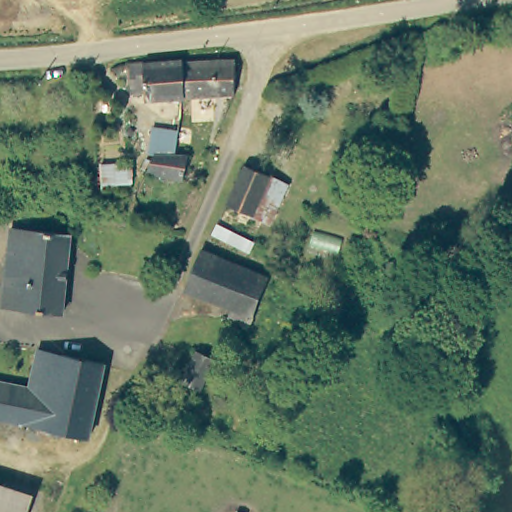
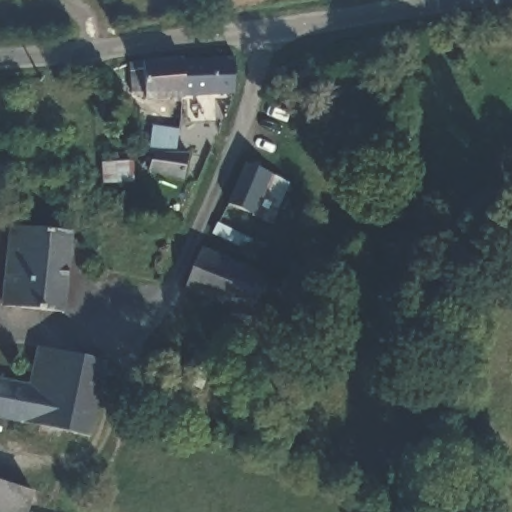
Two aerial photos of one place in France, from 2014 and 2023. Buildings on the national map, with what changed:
unchanged [(185,62),(238,61),(238,65),(239,95),(186,95),(185,62)]
unchanged [(186,97),(147,100),(147,94),(130,95),(129,75),(129,67),(146,64),(185,62),(186,95),(186,97)]
unchanged [(141,177),(145,127),(179,130),(177,150),(188,152),(182,181),(141,177)]
unchanged [(283,184),(265,222),(221,201),(240,162),(260,173),(283,184)]
unchanged [(70,237),(62,316),(1,309),(10,231),(70,237)]
unchanged [(248,322),(227,314),(231,304),(184,284),(201,242),(270,272),(248,322)]
unchanged [(230,345),(225,358),(213,353),(201,381),(184,373),(201,332),(230,345)]
unchanged [(174,338),(182,343),(185,353),(181,360),(174,364),(165,361),(160,354),(160,347),(164,341),(174,338)]
unchanged [(38,351),(105,364),(89,440),(22,426),(32,378),(38,351)]
unchanged [(22,426),(0,422),(0,383),(7,385),(10,374),(32,378),(22,426)]
unchanged [(28,495),(22,512),(0,512),(0,486),(28,495)]

